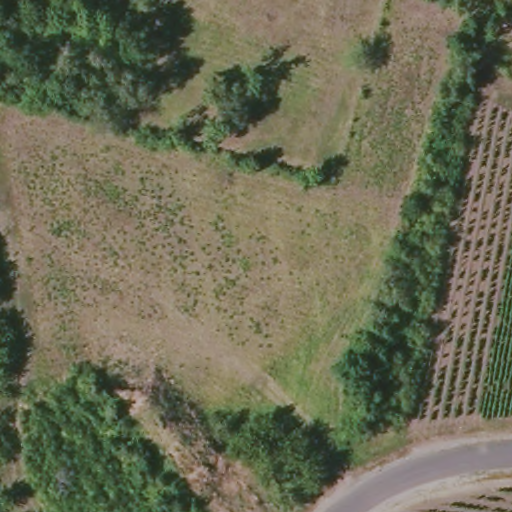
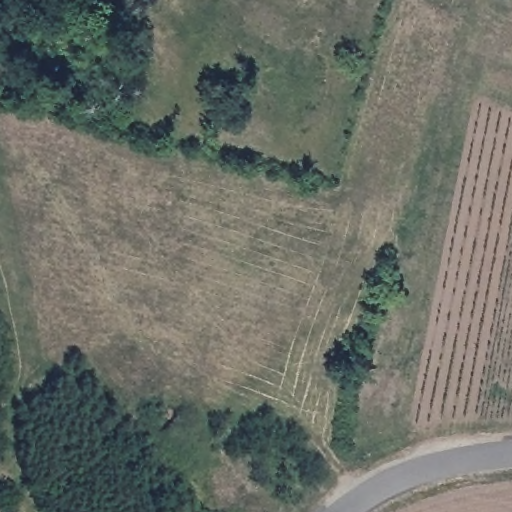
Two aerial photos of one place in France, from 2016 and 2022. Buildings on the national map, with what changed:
[]

